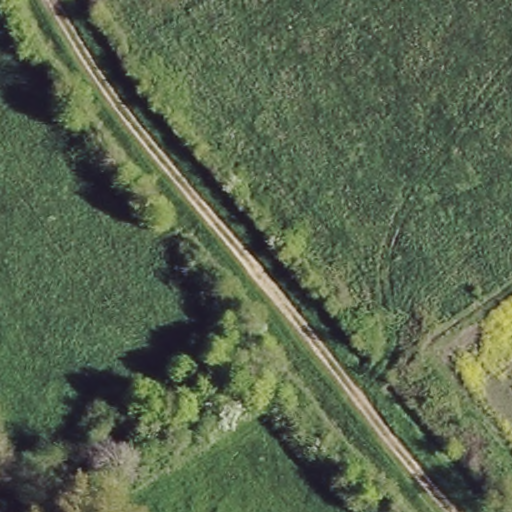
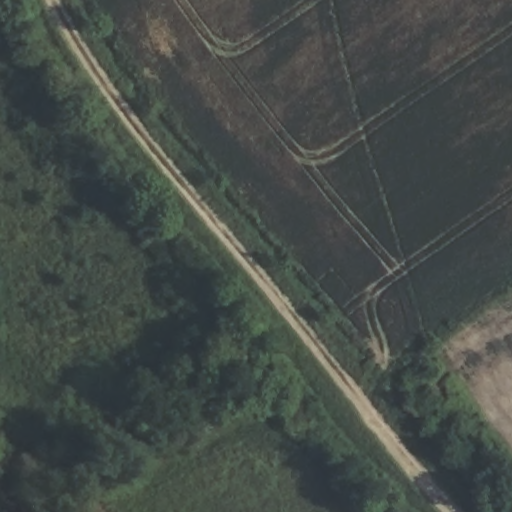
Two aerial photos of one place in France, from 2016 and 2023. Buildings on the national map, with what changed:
[]

